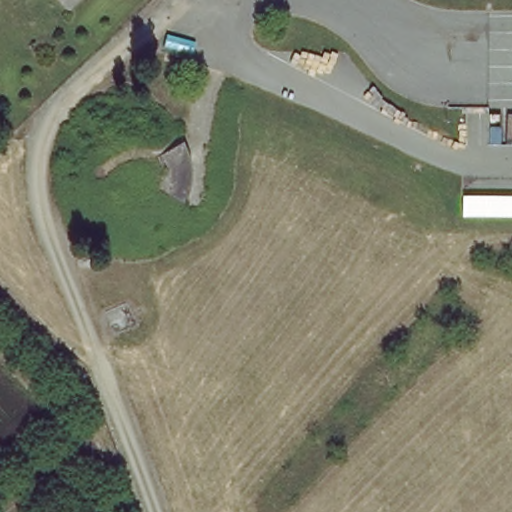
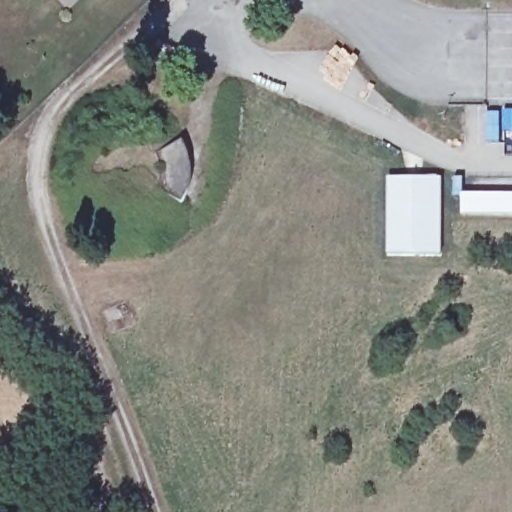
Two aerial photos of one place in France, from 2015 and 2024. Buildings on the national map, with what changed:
new [(442,179),(440,255),(388,254),(390,177),(442,179)]
new [(512,214),(463,213),(463,194),(512,195),(512,214)]

